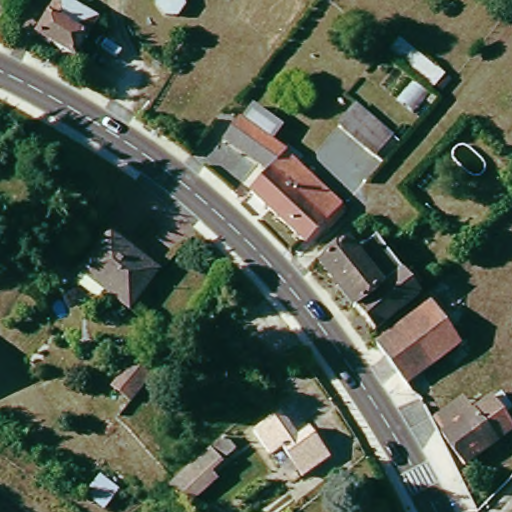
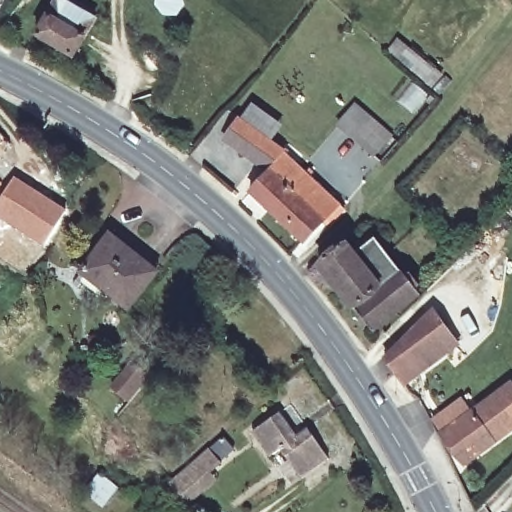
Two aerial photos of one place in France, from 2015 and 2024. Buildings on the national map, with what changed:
unchanged [(62,2),(98,21),(78,61),(41,41),(62,2)]
unchanged [(390,139),(374,161),(338,126),(357,107),(390,139)]
unchanged [(268,175),(224,140),(237,122),(278,152),(342,214),(327,230),(322,225),(303,245),(251,196),(268,175)]
new [(14,176),(66,210),(42,247),(0,219),(0,197),(14,176)]
unchanged [(82,276),(110,240),(155,277),(126,313),(82,276)]
unchanged [(352,256),(369,242),(403,283),(406,281),(417,294),(414,296),(416,299),(372,336),(317,268),(344,246),(352,256)]
unchanged [(443,383),(419,402),(412,400),(375,348),(428,310),(456,349),(432,367),(443,383)]
unchanged [(487,406),(497,399),(509,416),(500,424),(501,426),(484,439),(492,448),(462,470),(439,439),(486,404),(487,406)]
unchanged [(292,435),(302,427),(325,455),(299,477),(276,449),(264,459),(247,439),(275,415),(292,435)]
unchanged [(233,452),(210,474),(218,482),(187,511),(167,488),(221,438),(233,452)]

